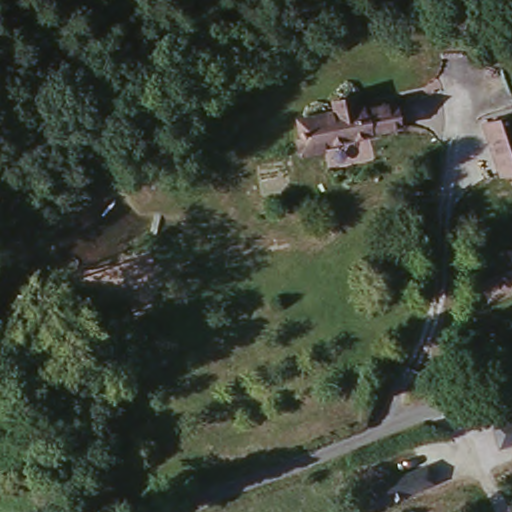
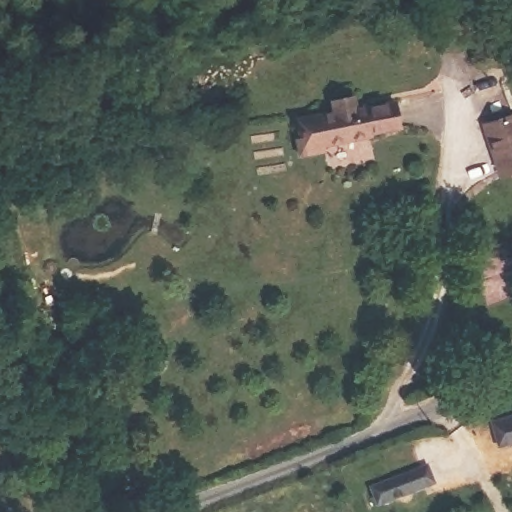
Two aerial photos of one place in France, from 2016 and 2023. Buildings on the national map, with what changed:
unchanged [(332,106),(329,93),(351,90),(353,101),(366,98),(367,104),(396,99),(400,124),(369,130),(370,135),(323,145),(324,149),(295,154),(290,136),(299,134),(296,112),(332,106)]
unchanged [(479,122),(512,113),(512,172),(496,176),(479,122)]
unchanged [(490,424),(512,416),(512,441),(497,446),(490,424)]
unchanged [(428,463),(434,480),(377,503),(371,486),(428,463)]

